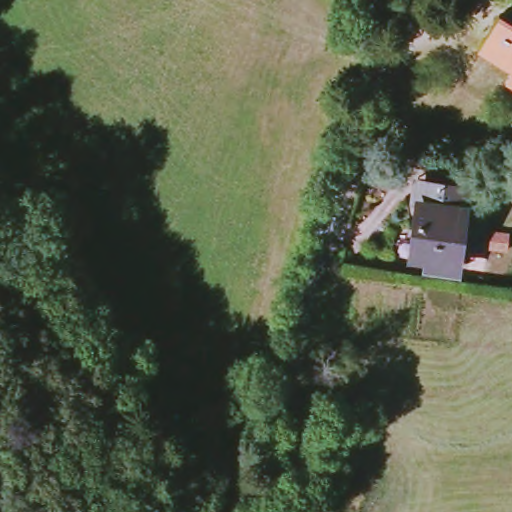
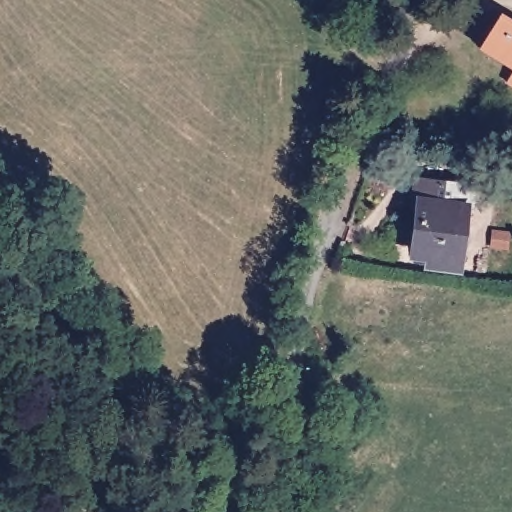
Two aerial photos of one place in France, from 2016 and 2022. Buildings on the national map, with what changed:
unchanged [(479,45),(488,33),(484,30),(489,23),(493,26),(503,14),(512,20),(512,66),(479,45)]
unchanged [(504,81),(512,69),(512,86),(504,81)]
unchanged [(436,264),(437,256),(417,253),(423,201),(465,206),(457,266),(436,264)]

